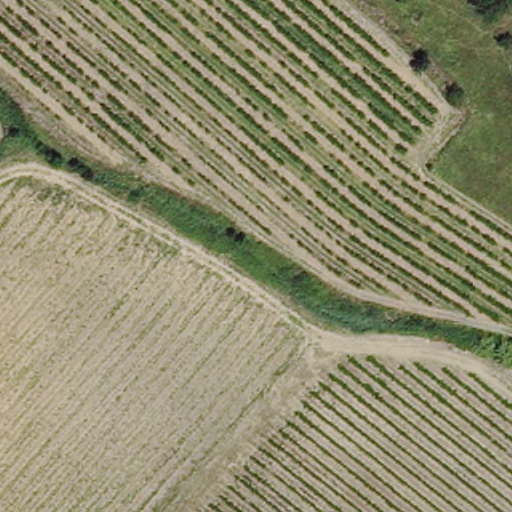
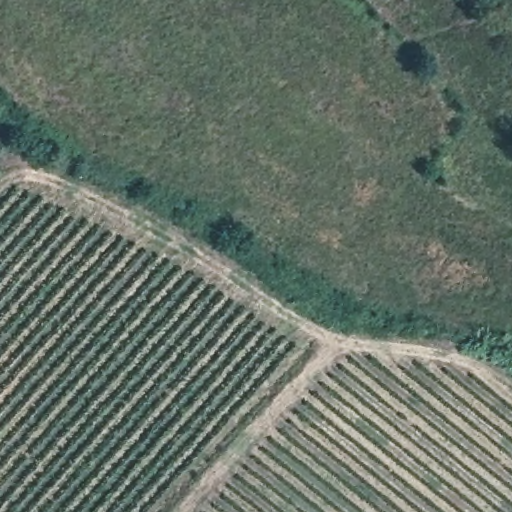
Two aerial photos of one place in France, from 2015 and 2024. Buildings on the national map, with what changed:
unchanged [(203,220),(220,232),(210,247),(194,232),(203,220)]

